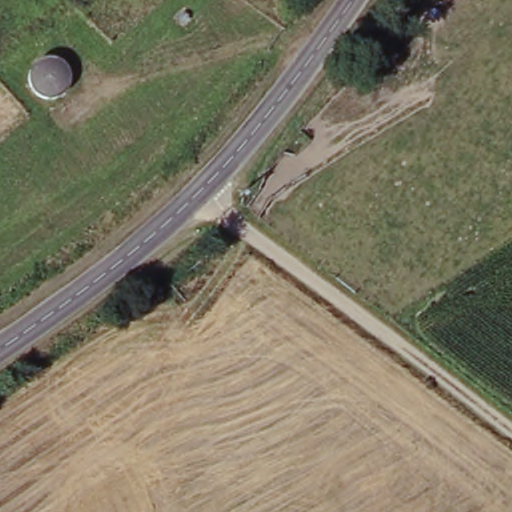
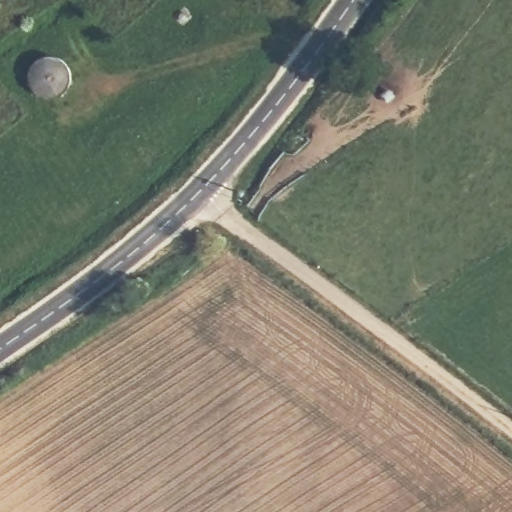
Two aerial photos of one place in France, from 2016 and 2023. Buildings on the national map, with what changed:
unchanged [(191,21),(191,22),(191,23),(191,24),(190,24),(189,24),(189,25),(188,25),(187,26),(186,26),(185,26),(184,26),(183,26),(182,26),(182,25),(181,25),(181,24),(180,24),(180,23),(180,22),(180,21),(179,21),(179,20),(179,19),(180,19),(180,18),(180,17),(181,17),(181,16),(182,16),(182,15),(183,15),(184,15),(184,14),(185,14),(186,14),(187,14),(187,15),(188,15),(189,15),(189,16),(190,16),(190,17),(190,18),(191,18),(191,19),(191,20),(191,21)]

